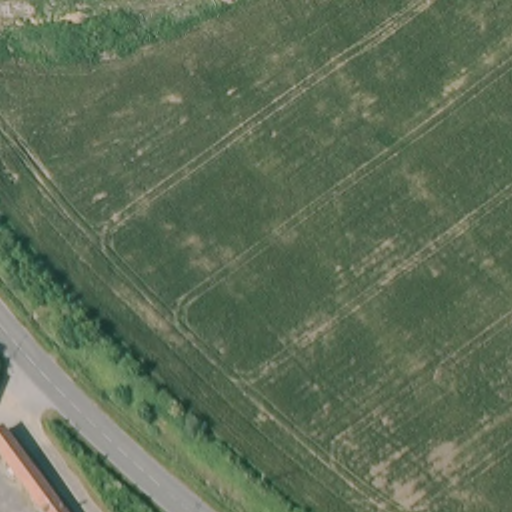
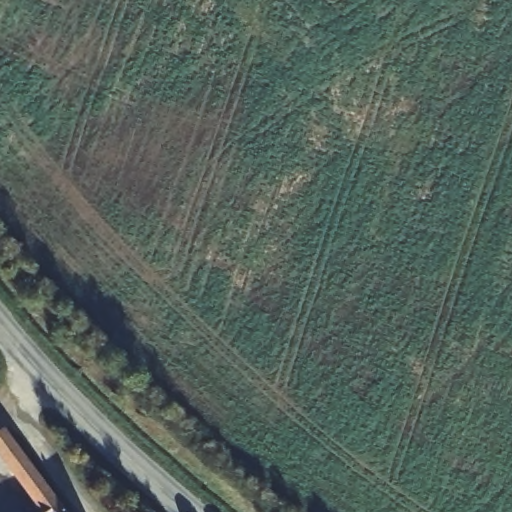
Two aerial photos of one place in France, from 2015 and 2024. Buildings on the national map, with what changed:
unchanged [(5,429),(64,512),(41,512),(0,454),(0,432),(5,429)]

